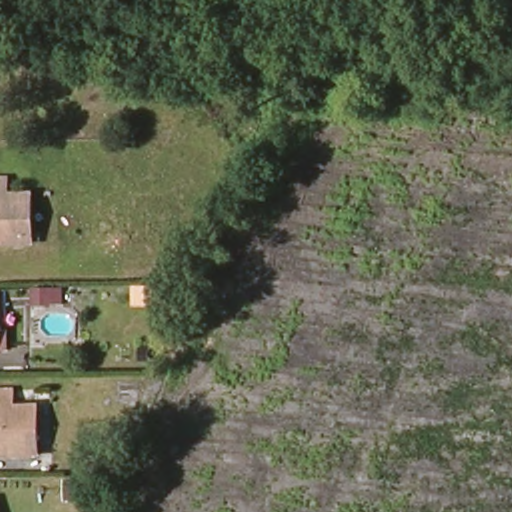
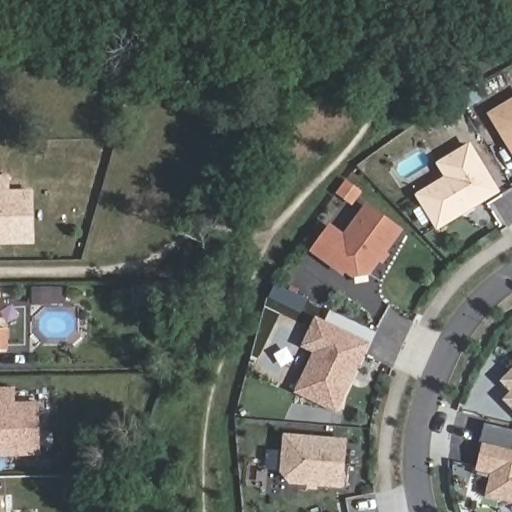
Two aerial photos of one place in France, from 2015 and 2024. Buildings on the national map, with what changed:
new [(486,114),(512,99),(512,154),(486,114)]
new [(437,231),(415,195),(444,177),(437,164),(471,142),(500,192),(437,231)]
unchanged [(6,179),(7,192),(30,191),(31,240),(0,241),(0,178),(4,178),(6,179)]
new [(372,275),(350,280),(311,252),(331,224),(344,234),(366,204),(404,230),(372,275)]
new [(33,288),(64,289),(65,305),(33,305),(33,288)]
new [(338,413),(295,393),(313,354),(300,347),(315,316),(371,343),(338,413)]
new [(501,399),(509,392),(498,381),(512,367),(512,409),(501,399)]
unchanged [(13,404),(36,403),(37,454),(0,456),(0,390),(12,389),(13,404)]
new [(291,485),(281,474),(284,434),(348,439),(343,487),(291,485)]
new [(490,494),(495,471),(479,468),(484,444),(512,450),(512,498),(490,494)]
new [(91,482),(92,502),(67,502),(66,482),(91,482)]

